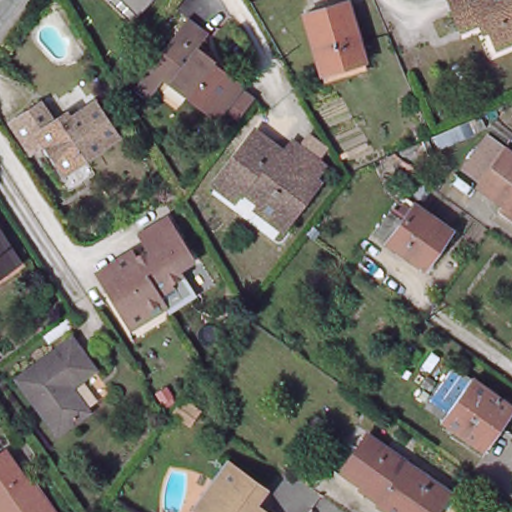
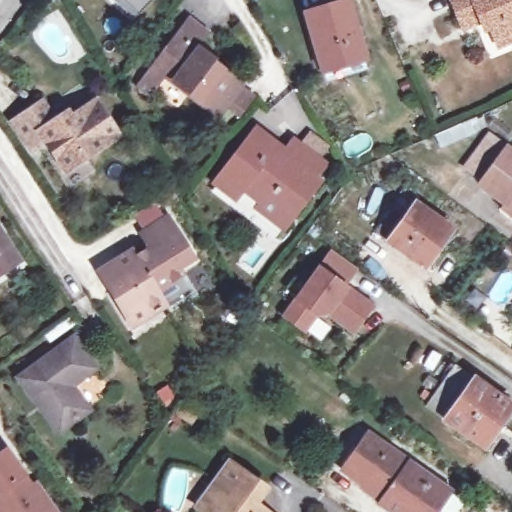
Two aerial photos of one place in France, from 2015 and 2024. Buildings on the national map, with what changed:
unchanged [(127,0),(159,0),(143,16),(127,0)]
unchanged [(323,73),(305,13),(349,0),(366,60),(323,73)]
unchanged [(504,48),(492,20),(469,29),(461,9),(457,0),(512,0),(512,44),(504,48)]
unchanged [(236,111),(221,100),(213,110),(161,70),(146,91),(131,82),(184,13),(206,29),(191,47),(236,80),(236,81),(249,93),(236,111)]
unchanged [(32,155),(13,127),(39,109),(52,126),(68,116),(71,122),(96,106),(120,141),(66,178),(44,147),(32,155)]
unchanged [(266,212),(246,197),(238,207),(219,193),(258,143),(276,156),(286,163),(295,152),(299,155),(303,158),(311,145),(328,157),(319,169),(325,173),(305,199),(310,203),(291,229),(286,235),(263,217),(266,212)]
unchanged [(508,209),(512,204),(485,185),(512,149),(512,212),(508,209)]
unchanged [(435,274),(386,239),(400,220),(412,229),(426,208),(463,234),(435,274)]
unchanged [(103,269),(136,249),(143,253),(157,244),(148,229),(173,215),(198,255),(183,264),(187,270),(177,276),(179,280),(164,289),(167,293),(168,294),(151,304),(155,311),(136,323),(119,294),(115,288),(103,269)]
unchanged [(0,281),(0,237),(20,269),(0,281)]
new [(293,299),(318,265),(329,249),(357,269),(344,284),(349,288),(374,304),(354,335),(328,318),(316,318),(305,335),(279,317),(293,299)]
demolished [(304,321),(291,312),(306,290),(319,299),(304,321)]
unchanged [(88,411),(58,432),(19,378),(73,340),(95,369),(71,387),(88,411)]
unchanged [(490,452),(426,408),(455,366),(512,406),(512,410),(501,426),(506,429),(490,452)]
unchanged [(191,422),(177,412),(184,401),(199,411),(191,422)]
unchanged [(384,499),(343,471),(369,434),(451,493),(437,512),(390,512),(379,505),(384,499)]
unchanged [(0,454),(4,451),(36,495),(40,492),(54,512),(0,512),(0,454)]
unchanged [(203,507),(235,463),(271,489),(259,503),(272,512),(273,512),(209,512),(203,507)]

